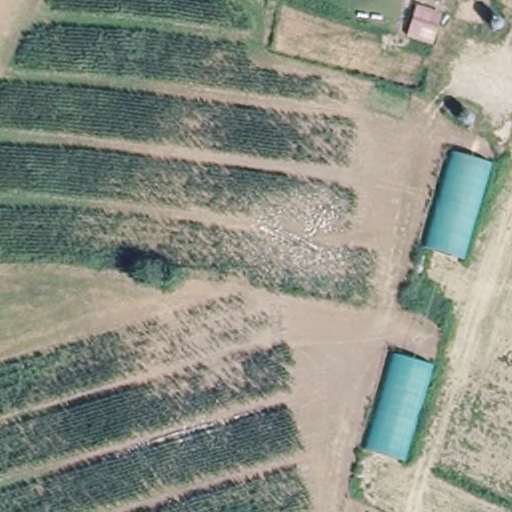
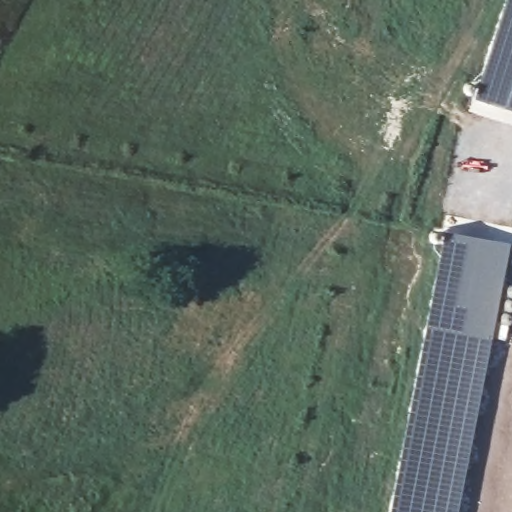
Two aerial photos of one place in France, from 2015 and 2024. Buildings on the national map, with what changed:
new [(471,100),(467,97),(464,95),(463,90),(465,85),(470,83),(475,84),(480,87),(508,0),(512,0),(512,110),(476,99),(471,100)]
demolished [(454,150),(491,160),(465,255),(427,244),(454,150)]
new [(512,283),(512,322),(508,325),(506,325),(494,322),(458,512),(392,512),(443,245),(437,244),(434,241),(431,236),(432,234),(432,232),(435,229),(440,229),(446,230),(510,242),(502,283),(512,283)]
demolished [(394,349),(435,362),(407,458),(366,447),(394,349)]

